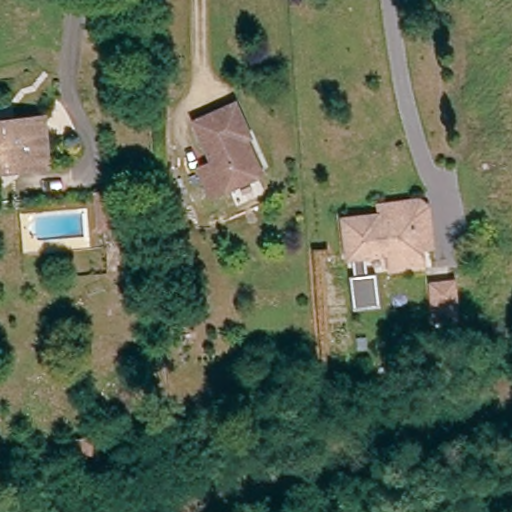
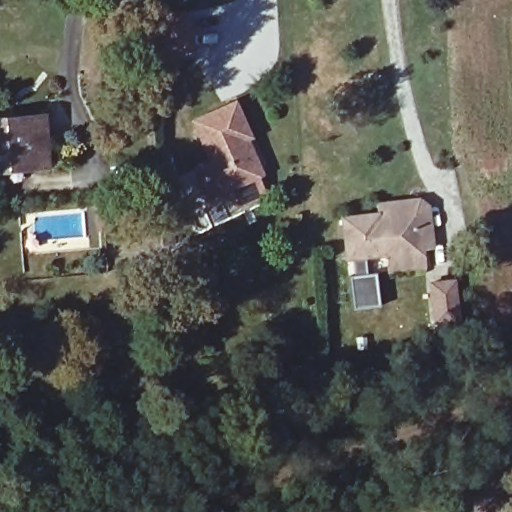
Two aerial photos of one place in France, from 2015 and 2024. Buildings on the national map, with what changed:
unchanged [(262,179),(213,200),(200,172),(215,166),(199,126),(241,109),(254,141),(247,144),(262,179)]
unchanged [(0,166),(0,122),(44,121),(45,165),(0,166)]
unchanged [(375,200),(418,196),(432,207),(435,250),(419,251),(414,252),(412,217),(377,220),(376,215),(375,200)]
unchanged [(136,197),(136,232),(99,233),(99,197),(136,197)]
unchanged [(377,220),(412,217),(414,252),(419,251),(421,269),(384,273),(383,257),(361,259),(363,276),(372,275),(374,295),(374,304),(348,306),(346,282),(345,277),(351,277),(349,260),(344,260),(340,218),(376,215),(377,220)]
unchanged [(427,319),(425,289),(444,288),(446,328),(427,329),(427,319)]

